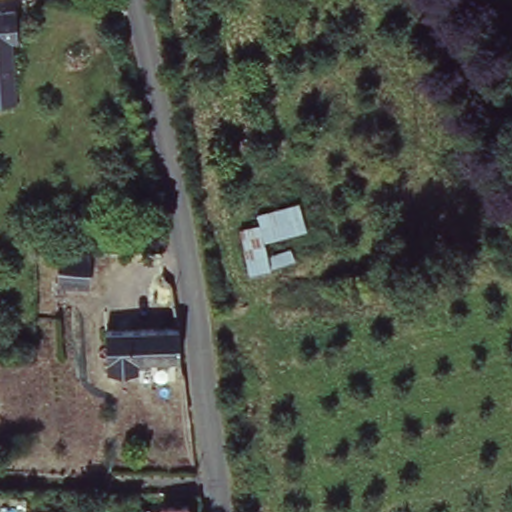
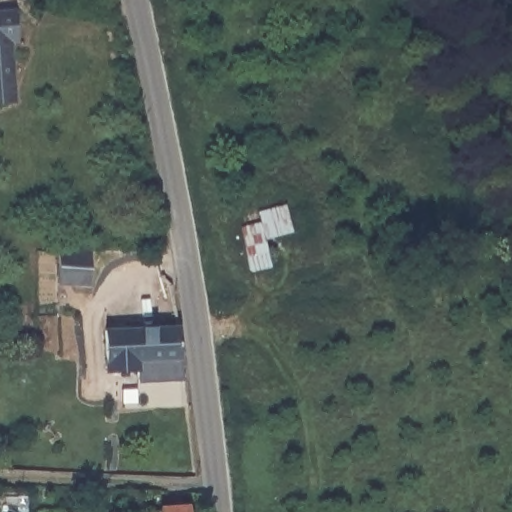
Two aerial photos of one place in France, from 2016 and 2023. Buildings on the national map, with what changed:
unchanged [(17,7),(18,37),(11,37),(16,99),(0,100),(0,8),(17,7)]
unchanged [(294,258),(268,266),(248,270),(241,227),(260,224),(257,213),(299,203),(304,227),(262,235),(267,256),(291,249),(294,258)]
unchanged [(89,245),(88,281),(57,278),(58,245),(89,245)]
unchanged [(138,355),(139,366),(107,367),(105,327),(178,322),(179,353),(138,355)]
unchanged [(187,512),(162,512),(161,502),(186,501),(187,512)]
unchanged [(63,510),(63,512),(34,512),(34,506),(63,510)]

